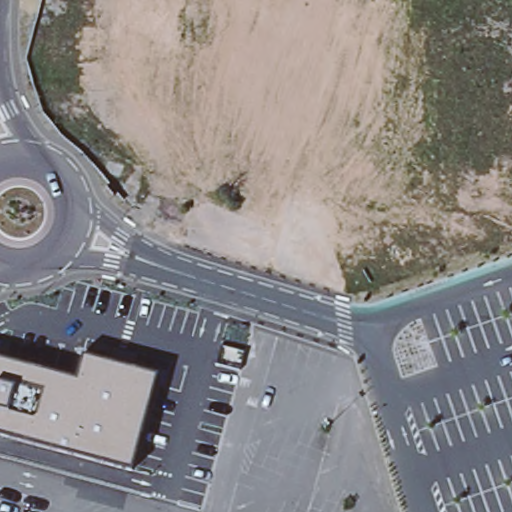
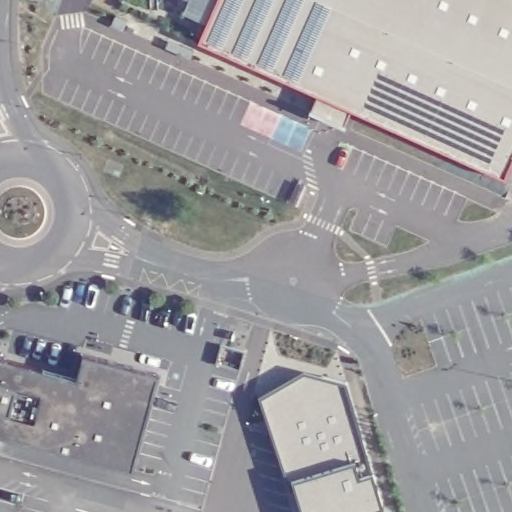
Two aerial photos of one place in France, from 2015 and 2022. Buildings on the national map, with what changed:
new [(206,25),(182,12),(187,0),(186,0),(512,0),(512,157),(504,175),(350,109),(342,126),(307,110),(315,92),(198,42),(206,25)]
unchanged [(0,357),(77,377),(83,355),(157,375),(131,467),(0,432),(0,357)]

